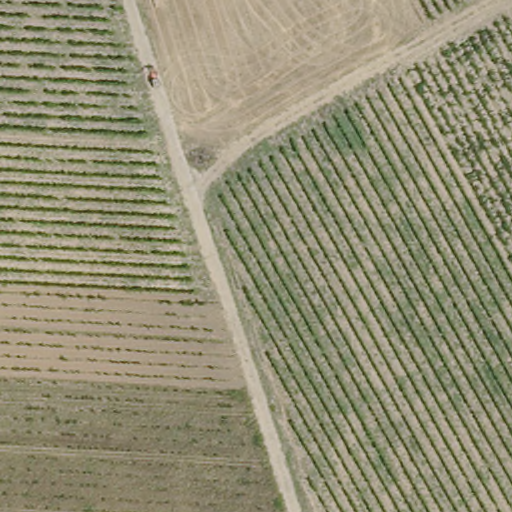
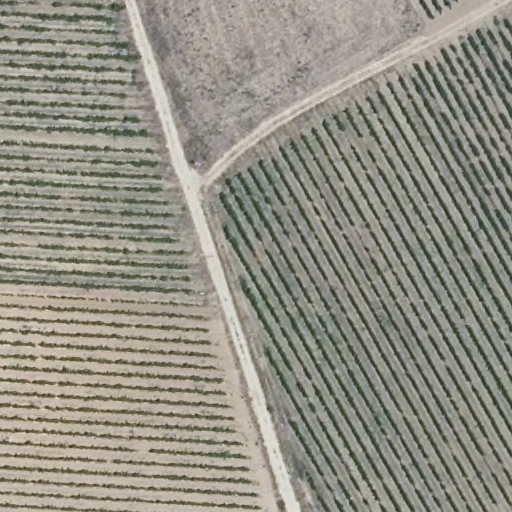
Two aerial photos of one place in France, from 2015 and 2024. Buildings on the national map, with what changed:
[]

